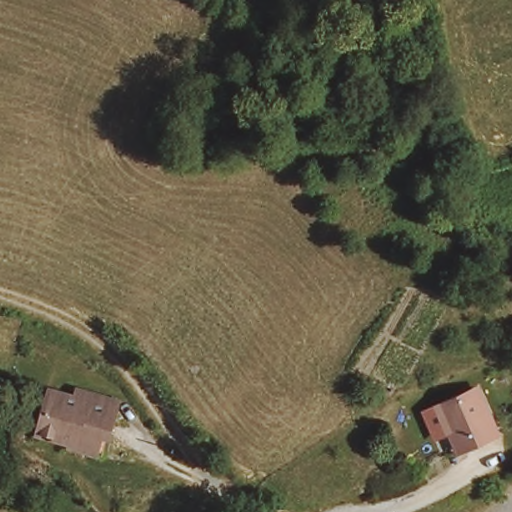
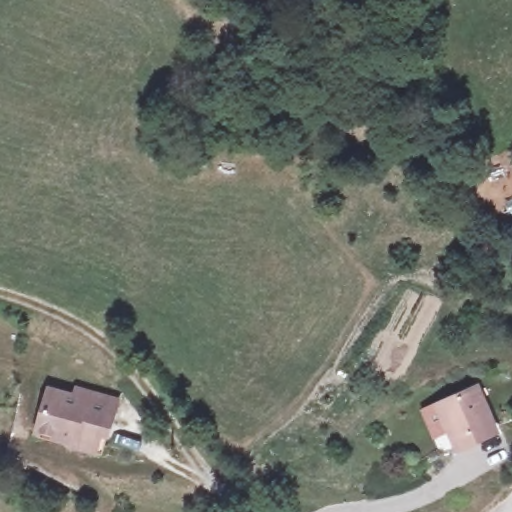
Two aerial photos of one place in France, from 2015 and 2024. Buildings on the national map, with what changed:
unchanged [(438,406),(455,397),(489,382),(509,428),(469,444),(456,451),(438,406)]
unchanged [(103,449),(37,432),(40,422),(48,384),(76,390),(79,385),(115,394),(112,412),(104,411),(101,424),(108,426),(103,449)]

